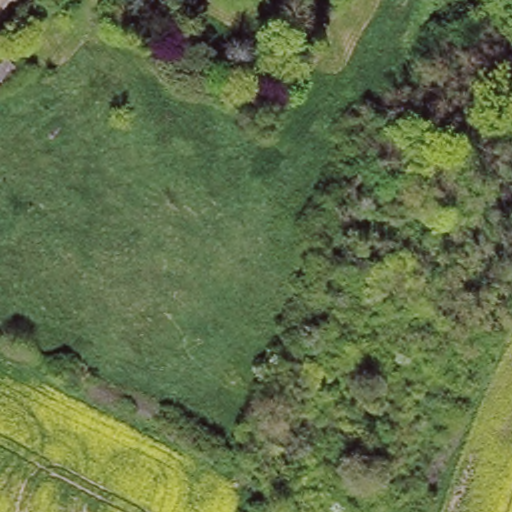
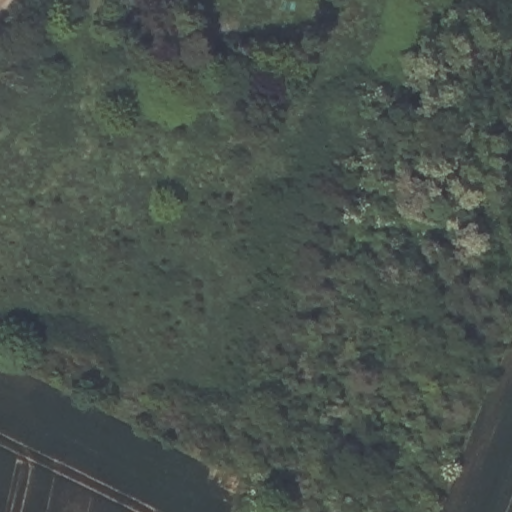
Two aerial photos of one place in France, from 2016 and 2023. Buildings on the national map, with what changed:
unchanged [(0,57),(7,52),(22,70),(0,88),(0,57)]

